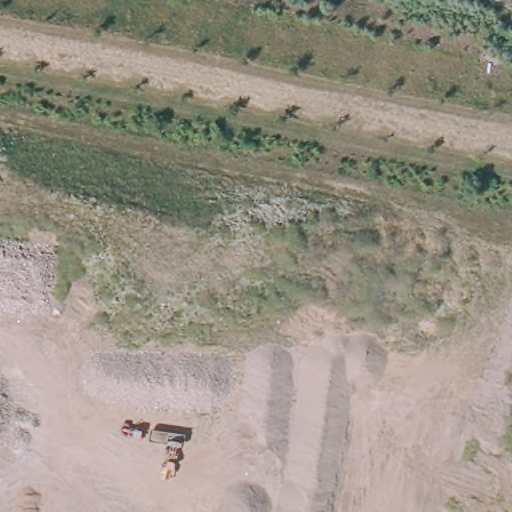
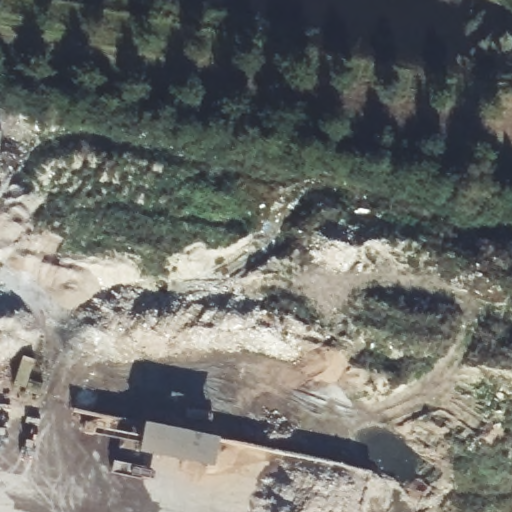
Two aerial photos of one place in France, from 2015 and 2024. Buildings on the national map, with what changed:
new [(142,427),(214,441),(209,465),(138,451),(142,427)]

